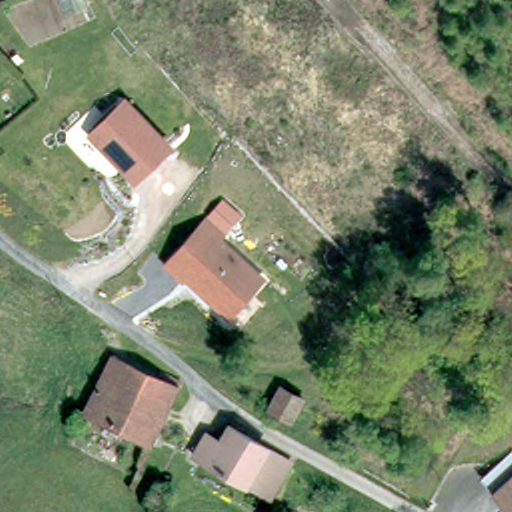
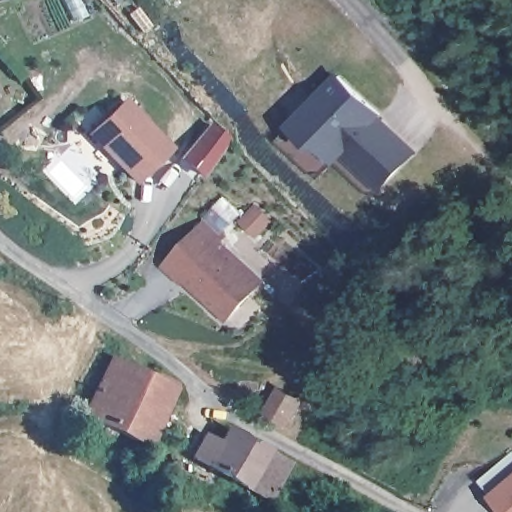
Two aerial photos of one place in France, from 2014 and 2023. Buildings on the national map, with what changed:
new [(421,149),(383,189),(344,158),(339,163),(321,145),(318,148),(289,124),(341,71),(386,112),(383,116),(421,149)]
unchanged [(126,95),(174,146),(134,185),(88,134),(126,95)]
unchanged [(208,215),(228,234),(224,240),(268,280),(231,322),(188,284),(185,285),(164,266),(208,215)]
unchanged [(180,395),(161,433),(159,435),(148,457),(85,425),(114,363),(158,384),(180,395)]
unchanged [(271,417),(284,395),(305,408),(292,429),(271,417)]
unchanged [(214,472),(206,467),(198,463),(209,441),(226,449),(233,434),(281,461),(298,469),(276,508),(274,512),(261,512),(266,502),(214,472)]
unchanged [(512,486),(512,512),(505,512),(495,501),(512,486)]

